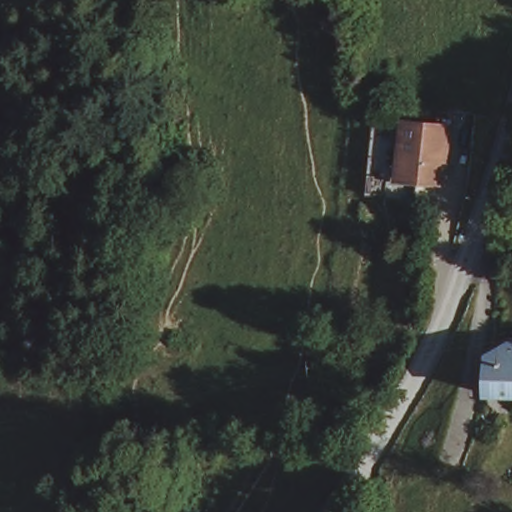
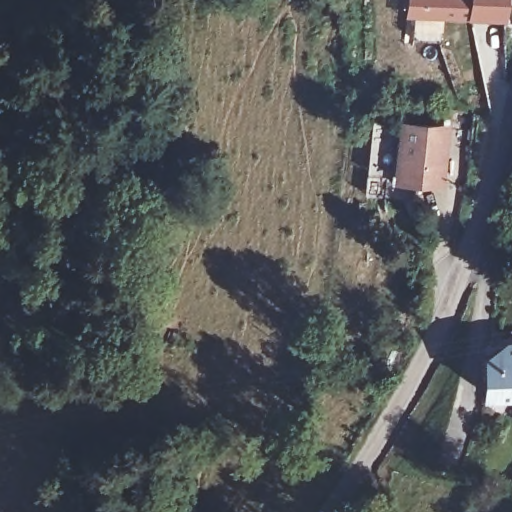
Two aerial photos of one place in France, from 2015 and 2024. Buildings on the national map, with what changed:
new [(509,0),(507,25),(404,12),(406,0),(509,0)]
unchanged [(443,120),(444,175),(401,175),(400,120),(443,120)]
unchanged [(481,386),(483,360),(490,357),(487,346),(485,339),(511,328),(512,328),(512,389),(481,386)]

